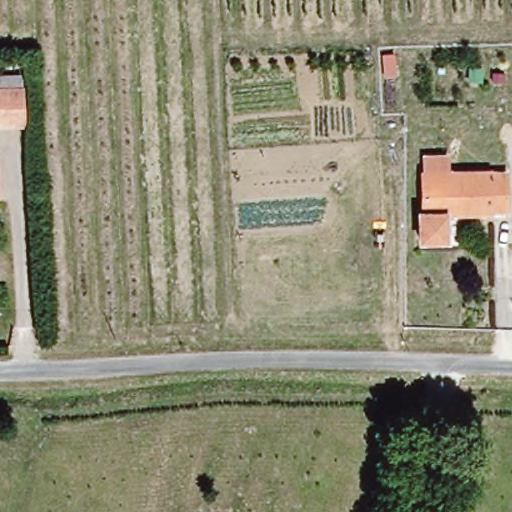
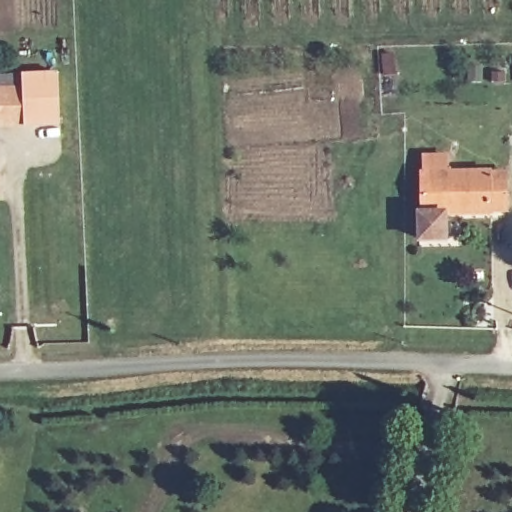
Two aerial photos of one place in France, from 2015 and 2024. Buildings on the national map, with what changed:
new [(23,71),(58,71),(61,124),(26,126),(0,127),(0,87),(24,85),(23,71)]
demolished [(24,121),(0,121),(0,86),(25,86),(24,121)]
unchanged [(447,234),(421,235),(421,210),(426,205),(425,168),(503,166),(505,206),(447,208),(447,234)]

